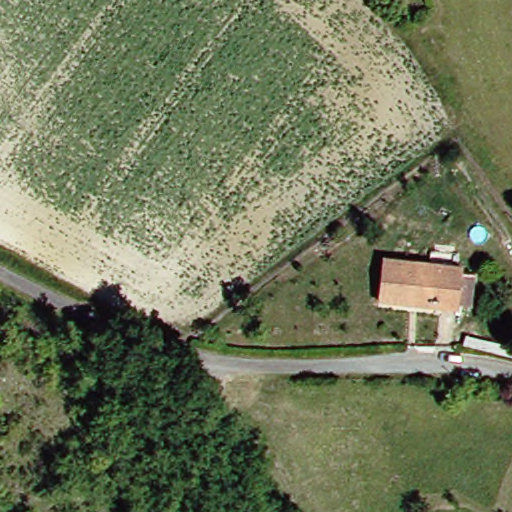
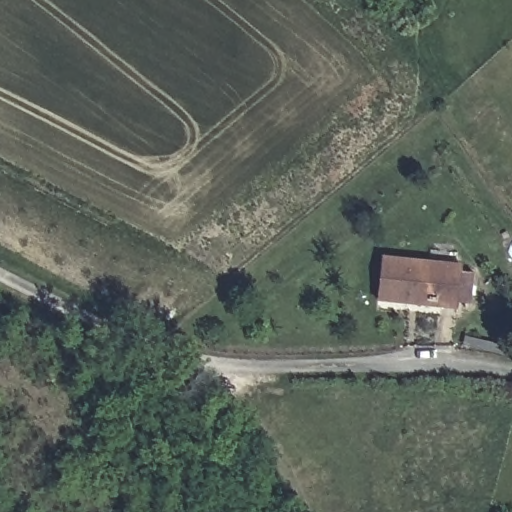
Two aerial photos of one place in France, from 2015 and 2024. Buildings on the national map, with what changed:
unchanged [(462,306),(444,304),(443,309),(369,299),(373,256),(447,264),(466,269),(462,306)]

